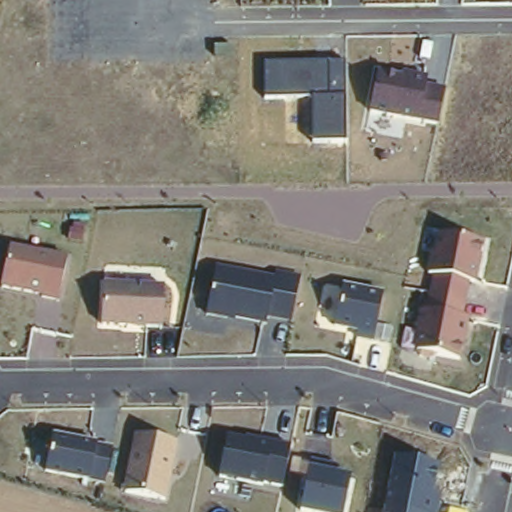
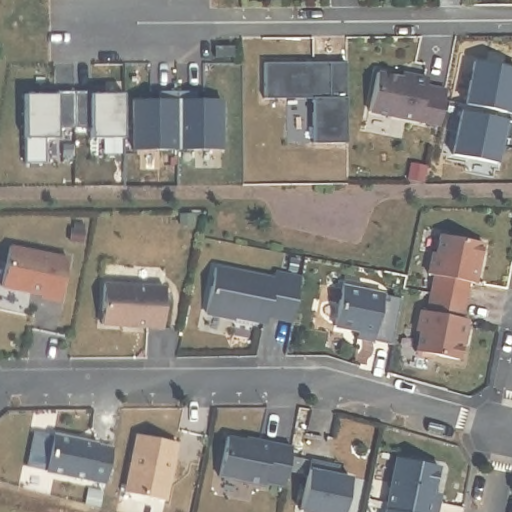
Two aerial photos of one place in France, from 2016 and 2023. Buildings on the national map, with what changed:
new [(512,88),(512,107),(466,98),(473,54),(512,62),(512,84),(512,88)]
unchanged [(345,56),(344,140),(310,141),(308,94),(264,94),(264,59),(345,56)]
unchanged [(402,73),(402,69),(427,74),(424,85),(443,89),(436,124),(367,109),(377,67),(402,73)]
new [(56,89),(56,86),(74,86),(74,123),(57,123),(58,134),(25,134),(25,89),(56,89)]
new [(91,86),(92,89),(123,88),(124,133),(91,134),(91,123),(74,123),(74,86),(91,86)]
new [(156,96),(156,88),(175,88),(175,146),(131,146),(131,96),(149,96),(156,96)]
new [(193,96),(201,96),(219,95),(219,145),(175,146),(175,88),(193,88),(193,96)]
new [(493,158),(451,150),(459,106),(510,115),(507,134),(498,132),(497,139),(493,158)]
unchanged [(457,358),(431,352),(430,358),(410,354),(418,308),(427,310),(433,274),(427,274),(432,250),(437,251),(440,232),(482,240),(473,282),(467,279),(460,318),(466,318),(457,358)]
unchanged [(59,298),(0,286),(9,245),(67,257),(59,298)]
unchanged [(275,278),(277,274),(302,278),(292,327),(270,322),(268,327),(206,314),(217,267),(275,278)]
unchanged [(162,327),(101,324),(104,283),(164,287),(162,327)]
unchanged [(372,344),(354,339),(355,334),(335,329),(343,287),(386,295),(372,344)]
unchanged [(292,447),(283,490),(266,486),(265,491),(217,479),(227,434),(292,447)]
unchanged [(99,445),(97,449),(117,454),(109,488),(46,474),(55,436),(99,445)]
unchanged [(180,445),(168,504),(124,494),(135,436),(180,445)]
unchanged [(440,465),(435,497),(443,498),(440,512),(410,512),(385,507),(393,456),(440,465)]
unchanged [(352,477),(346,512),(301,512),(309,469),(352,477)]
unchanged [(410,512),(384,512),(385,507),(410,512)]

